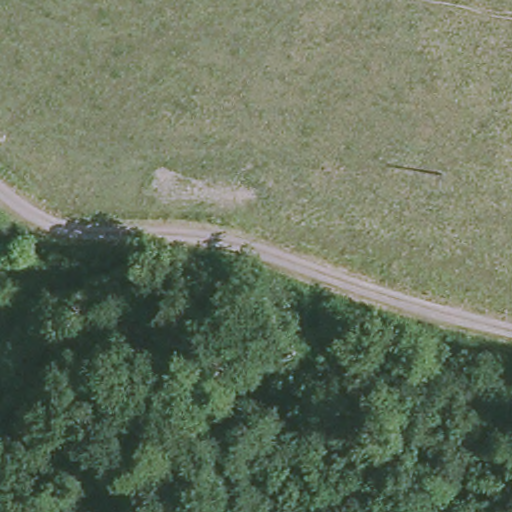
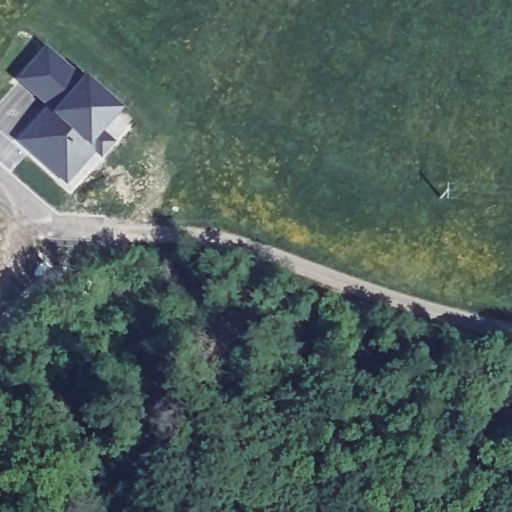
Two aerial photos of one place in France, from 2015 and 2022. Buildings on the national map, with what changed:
new [(79,81),(83,77),(121,112),(100,133),(115,143),(100,160),(92,155),(65,187),(15,142),(45,108),(15,82),(43,48),(79,81)]

